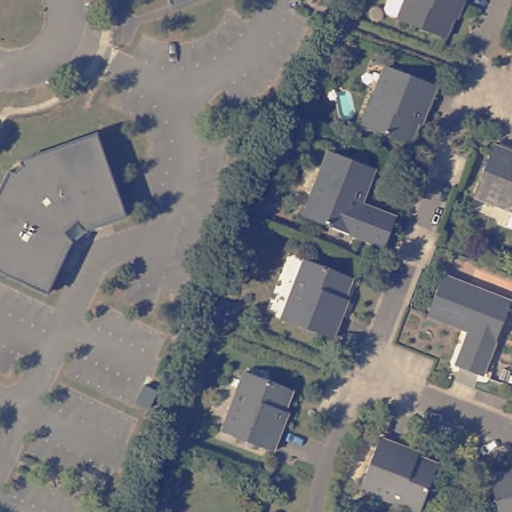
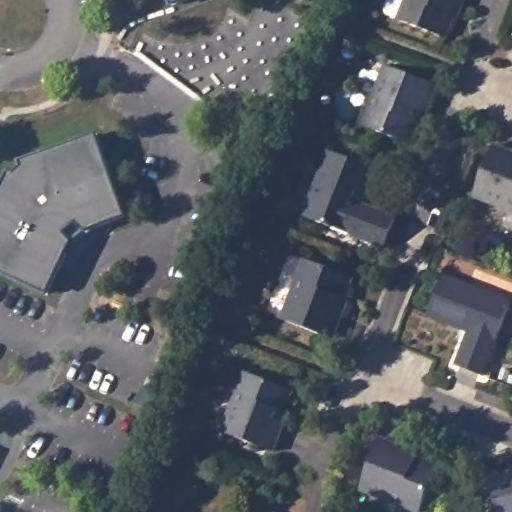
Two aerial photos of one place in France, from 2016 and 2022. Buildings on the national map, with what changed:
unchanged [(164,10),(160,0),(192,0),(164,10)]
unchanged [(459,6),(456,5),(442,41),(394,20),(394,18),(383,14),(381,10),(385,0),(461,0),(459,6)]
unchanged [(384,71),(435,90),(426,116),(421,114),(409,148),(360,131),(384,71)]
unchanged [(0,181),(3,175),(6,179),(18,169),(14,165),(92,138),(120,221),(78,236),(69,227),(58,237),(66,246),(41,299),(0,280),(0,181)]
unchanged [(491,140),(512,149),(512,207),(472,191),(491,140)]
unchanged [(327,151),(373,170),(359,204),(392,217),(382,245),(303,215),(327,151)]
unchanged [(300,257),(347,275),(334,310),(340,312),(329,338),(277,316),(300,257)]
unchanged [(449,274),(512,299),(512,302),(485,371),(460,360),(472,328),(434,312),(449,274)]
unchanged [(234,302),(228,318),(213,312),(219,295),(234,302)]
unchanged [(244,374),(292,390),(279,425),(284,427),(275,453),(223,435),(244,374)]
unchanged [(383,437),(413,449),(412,454),(438,465),(421,510),(363,489),(383,437)]
unchanged [(512,471),(512,512),(497,512),(491,476),(512,471)]

